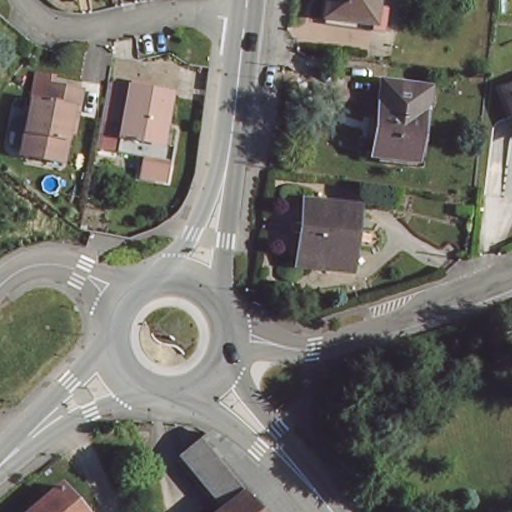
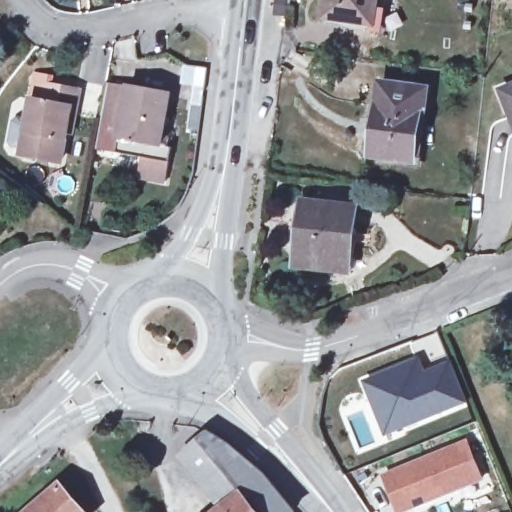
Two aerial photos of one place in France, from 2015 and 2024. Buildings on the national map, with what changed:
unchanged [(365,26),(319,19),(322,0),(370,0),(365,26)]
unchanged [(64,141),(59,168),(21,160),(37,78),(50,80),(47,90),(78,97),(75,115),(70,142),(64,141)]
unchanged [(167,92),(160,143),(172,145),(170,158),(114,152),(117,124),(96,120),(103,82),(167,92)]
unchanged [(502,93),(512,88),(512,119),(502,93)]
unchanged [(423,96),(422,118),(417,117),(410,167),(367,160),(378,89),(423,96)]
unchanged [(356,210),(350,271),(298,264),(305,203),(356,210)]
new [(418,353),(425,367),(450,357),(468,402),(385,435),(360,378),(418,353)]
unchanged [(220,451),(259,483),(220,511),(177,460),(179,429),(220,451)]
new [(396,512),(381,475),(467,440),(483,480),(404,512),(396,512)]
unchanged [(259,483),(283,512),(218,512),(220,511),(259,483)]
unchanged [(77,512),(24,512),(55,485),(77,512)]

